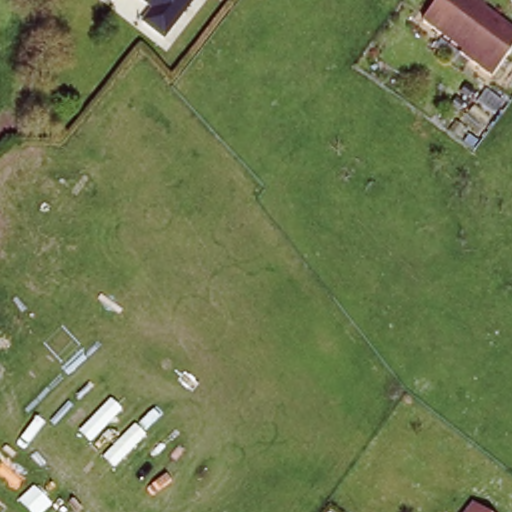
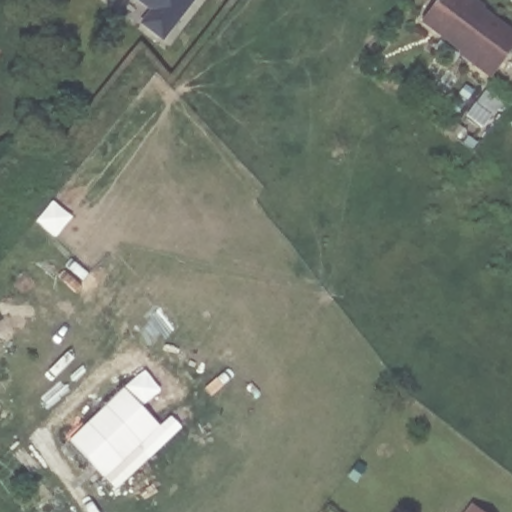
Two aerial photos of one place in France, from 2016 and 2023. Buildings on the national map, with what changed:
unchanged [(162,38),(139,21),(150,8),(139,0),(194,0),(162,38)]
unchanged [(480,3),(512,29),(512,52),(495,73),(467,50),(466,42),(429,12),(438,0),(480,0),(480,3)]
new [(466,85),(473,91),(468,98),(460,93),(466,85)]
new [(457,99),(464,104),(459,111),(451,106),(457,99)]
new [(469,135),(478,143),(472,150),(464,143),(469,135)]
new [(117,490),(106,477),(104,480),(70,440),(125,386),(161,425),(172,414),(184,427),(117,490)]
new [(357,464),(365,469),(357,480),(350,475),(357,464)]
unchanged [(463,512),(471,501),(485,512),(463,512)]

